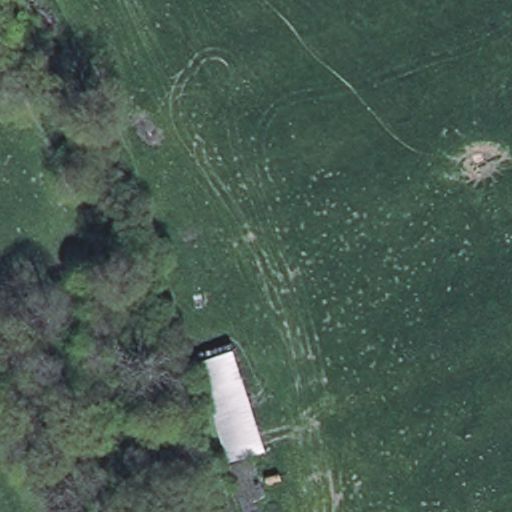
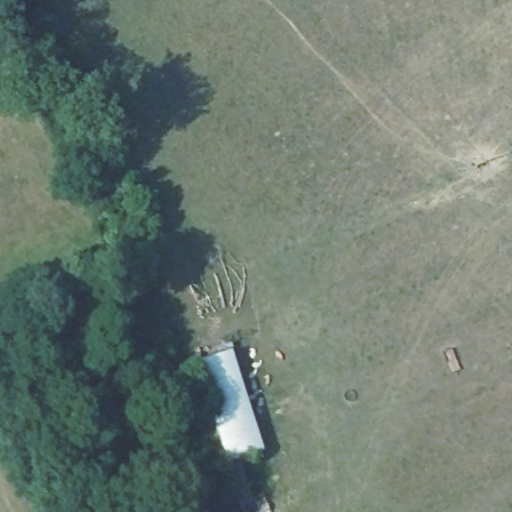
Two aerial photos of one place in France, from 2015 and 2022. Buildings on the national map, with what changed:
unchanged [(225,463),(195,361),(203,359),(230,349),(263,450),(247,455),(264,495),(240,505),(225,463)]

